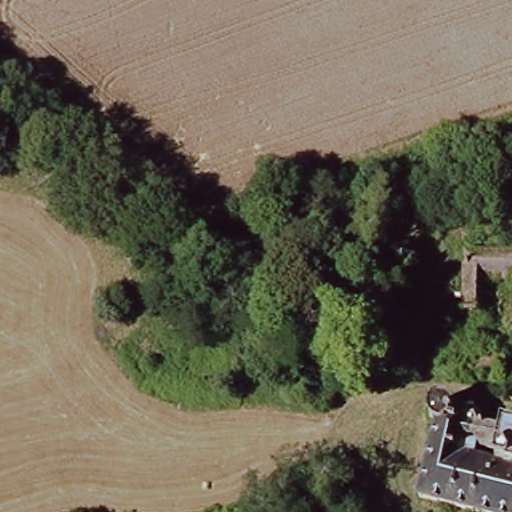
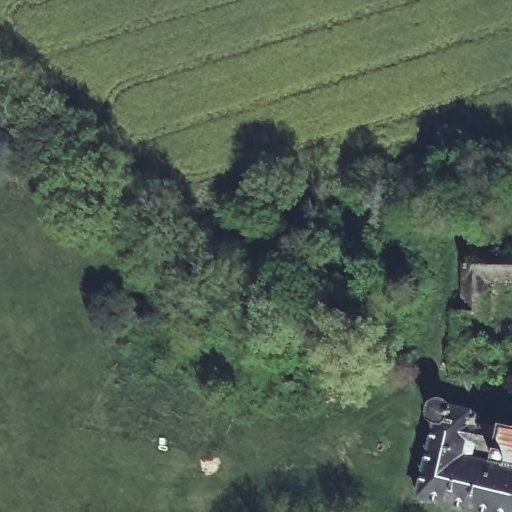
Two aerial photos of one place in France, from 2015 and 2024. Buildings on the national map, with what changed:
unchanged [(493,280),(492,315),(465,314),(465,250),(512,251),(512,281),(493,280)]
unchanged [(485,426),(512,432),(512,512),(467,512),(420,500),(437,431),(430,426),(426,416),(430,408),(437,405),(445,405),(452,411),(482,418),(485,426)]

